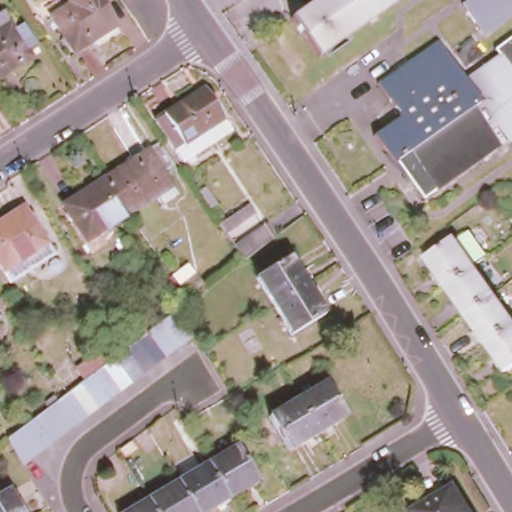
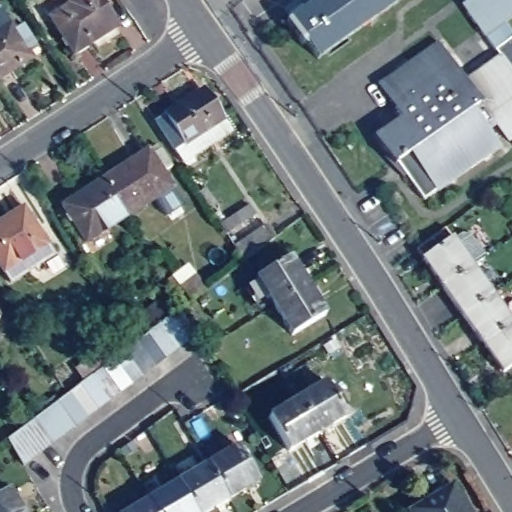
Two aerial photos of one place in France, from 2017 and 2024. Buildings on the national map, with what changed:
unchanged [(74,51),(50,13),(71,0),(104,0),(118,22),(74,51)]
unchanged [(290,15),(311,0),(393,0),(317,53),(290,15)]
unchanged [(470,0),(512,0),(512,19),(486,38),(462,6),(470,0)]
unchanged [(12,25),(15,29),(22,24),(36,44),(27,50),(33,58),(0,79),(0,32),(12,25)]
unchanged [(512,37),(512,64),(503,52),(499,55),(495,50),(512,37)]
unchanged [(397,164),(377,136),(405,117),(382,83),(443,42),(467,77),(487,104),(478,110),(504,147),(442,190),(424,164),(415,152),(397,164)]
unchanged [(512,64),(512,141),(504,147),(478,110),(487,104),(467,77),(503,52),(512,64)]
unchanged [(228,123),(178,156),(152,112),(200,81),(228,123)]
unchanged [(143,151),(147,157),(155,150),(167,169),(158,175),(172,196),(156,207),(150,199),(124,217),(100,179),(143,151)]
unchanged [(82,245),(57,206),(100,179),(124,217),(82,245)]
unchanged [(57,255),(12,283),(0,265),(0,224),(25,208),(57,255)]
unchanged [(248,209),(255,218),(225,239),(218,229),(248,209)]
unchanged [(263,227),(272,241),(241,263),(232,250),(263,227)]
unchanged [(472,266),(442,287),(422,258),(452,237),(472,266)]
unchanged [(255,276),(287,255),(298,271),(301,269),(309,282),(273,304),(255,276)]
unchanged [(178,266),(197,293),(181,305),(162,276),(178,266)]
unchanged [(492,293),(462,315),(442,287),(472,266),(492,293)]
unchanged [(318,296),(315,298),(324,313),(291,333),(273,304),(309,282),(318,296)]
unchanged [(512,365),(502,372),(462,315),(492,293),(512,321),(512,365)]
unchanged [(19,427),(30,419),(41,411),(52,403),(63,395),(76,385),(87,377),(97,368),(109,360),(120,352),(130,343),(142,335),(153,326),(175,310),(191,338),(173,352),(162,360),(151,369),(140,377),(128,386),(117,394),(106,402),(95,411),(83,420),(71,428),(60,437),(50,445),(38,453),(17,469),(1,441),(10,435),(19,427)]
unchanged [(2,313),(0,314),(0,311),(2,313)]
unchanged [(324,378),(345,413),(317,431),(297,395),(324,378)]
unchanged [(288,447),(267,413),(297,395),(317,431),(288,447)]
unchanged [(242,443),(262,478),(232,496),(212,461),(242,443)]
unchanged [(205,512),(201,512),(182,478),(212,461),(232,496),(205,512)]
unchanged [(152,497),(182,478),(201,512),(162,512),(152,497)]
unchanged [(7,483),(25,512),(24,512),(0,512),(0,487),(7,483)]
unchanged [(469,512),(411,512),(410,511),(452,484),(469,512)]
unchanged [(152,497),(162,512),(126,512),(152,497)]

